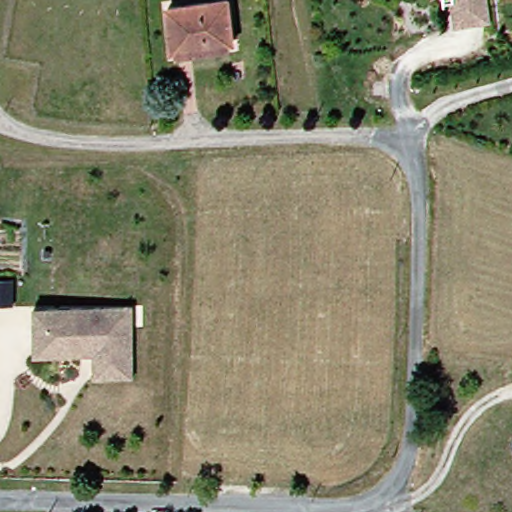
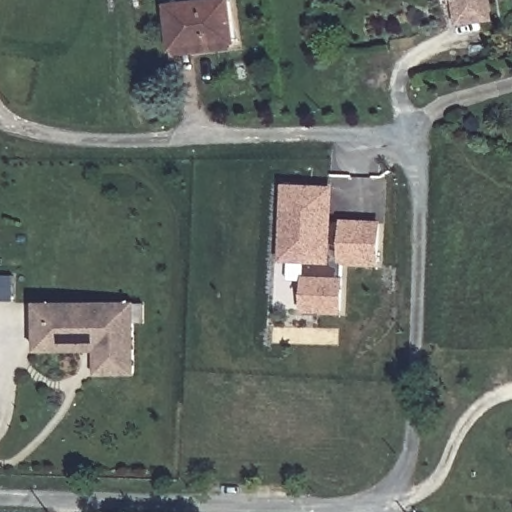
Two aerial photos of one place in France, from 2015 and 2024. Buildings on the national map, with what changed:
unchanged [(456,0),(487,0),(489,16),(458,20),(456,0)]
unchanged [(175,49),(170,7),(227,1),(232,42),(175,49)]
new [(332,218),(377,220),(375,265),(341,265),(340,314),(301,312),(303,280),(288,280),(289,262),(280,261),(282,182),(333,185),(332,218)]
unchanged [(135,300),(136,372),(98,373),(97,349),(38,350),(37,302),(135,300)]

